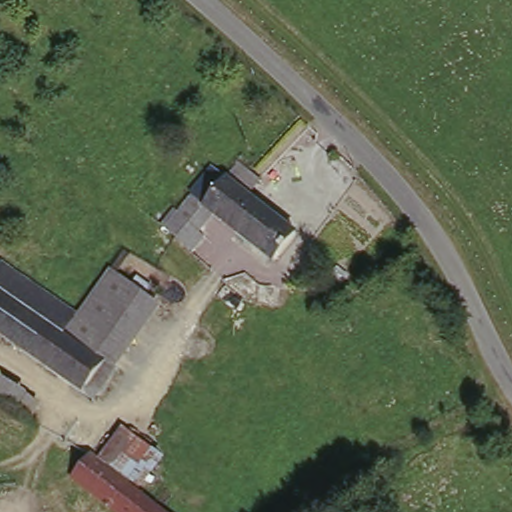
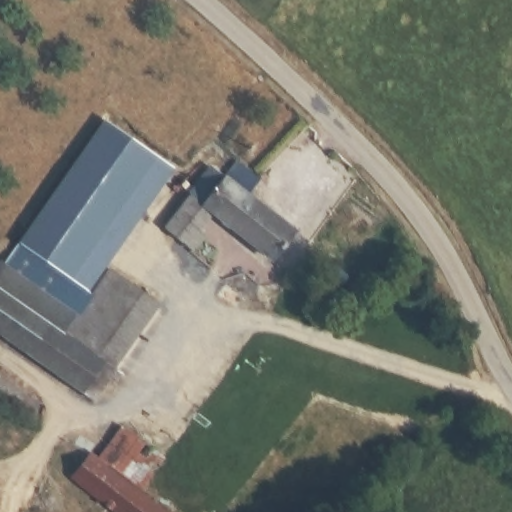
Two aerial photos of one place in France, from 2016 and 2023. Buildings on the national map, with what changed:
new [(19,248),(105,122),(178,173),(91,297),(19,248)]
unchanged [(221,226),(191,261),(158,234),(220,173),(236,154),(265,178),(251,196),(297,232),(276,265),(221,226)]
unchanged [(79,331),(96,344),(116,360),(84,401),(0,343),(0,277),(4,271),(82,327),(79,331)]
unchanged [(157,307),(116,360),(96,344),(79,331),(82,327),(121,275),(140,291),(157,307)]
unchanged [(28,427),(0,409),(0,380),(42,407),(28,427)]
unchanged [(66,486),(114,426),(162,458),(140,491),(166,512),(100,512),(66,486)]

